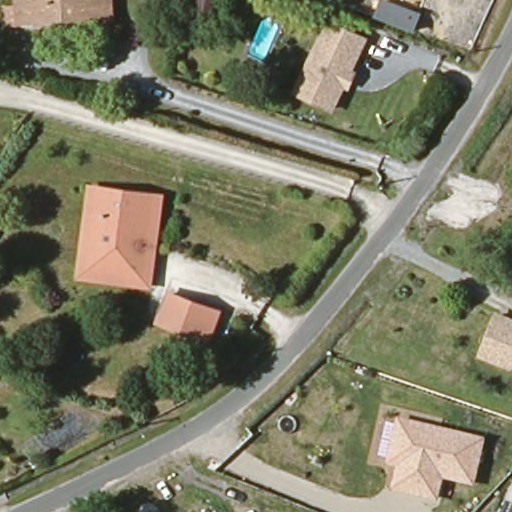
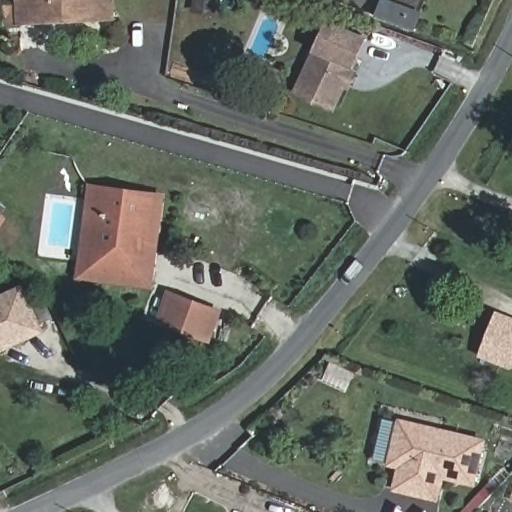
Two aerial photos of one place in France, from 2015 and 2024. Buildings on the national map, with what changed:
unchanged [(22,27),(21,0),(115,0),(116,22),(22,27)]
new [(383,1),(420,13),(413,30),(377,18),(383,1)]
unchanged [(292,89),(328,20),(364,39),(328,107),(292,89)]
unchanged [(148,287),(76,277),(89,189),(96,190),(86,264),(143,272),(153,198),(160,199),(148,287)]
unchanged [(153,198),(143,272),(86,264),(96,190),(153,198)]
unchanged [(4,196),(16,206),(0,225),(0,200),(4,196)]
new [(22,289),(41,330),(0,349),(0,299),(22,289)]
unchanged [(207,341),(160,324),(170,296),(217,313),(207,341)]
unchanged [(480,356),(495,316),(512,322),(512,363),(510,367),(502,364),(480,356)]
unchanged [(487,438),(476,487),(445,481),(440,503),(392,493),(397,469),(386,467),(398,418),(487,438)]
new [(404,512),(393,512),(395,506),(404,512)]

